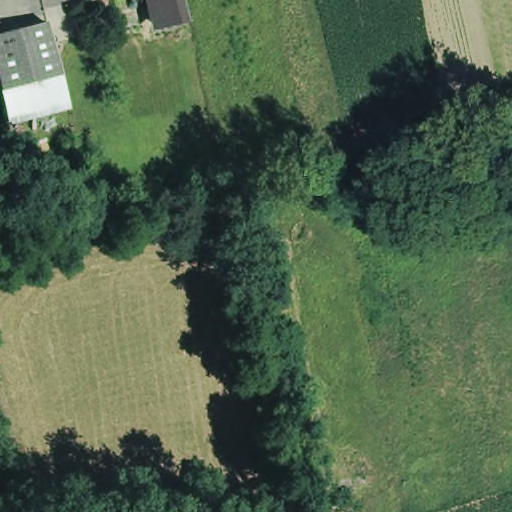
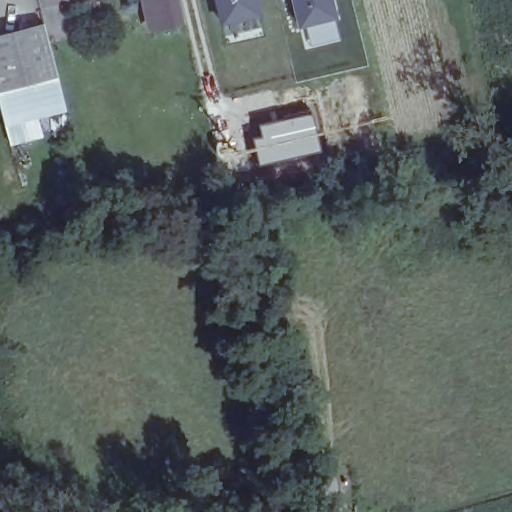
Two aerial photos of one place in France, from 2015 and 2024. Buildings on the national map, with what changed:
unchanged [(148,0),(176,0),(180,17),(153,24),(148,0)]
new [(261,11),(218,24),(212,0),(259,0),(261,11)]
new [(291,0),(333,0),(337,14),(297,26),(291,0)]
unchanged [(5,127),(0,106),(0,32),(42,22),(67,112),(5,127)]
new [(259,135),(257,123),(310,111),(320,150),(257,164),(252,137),(259,135)]

